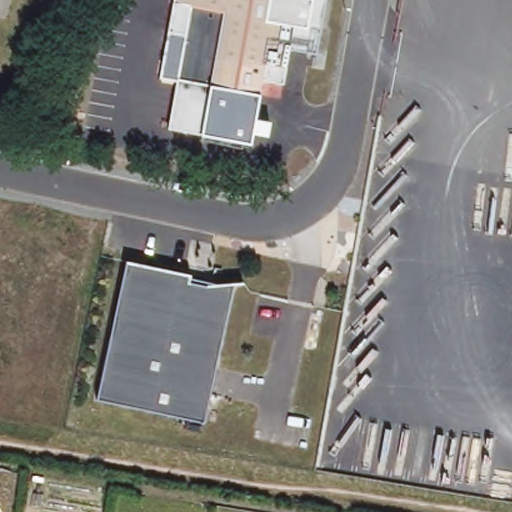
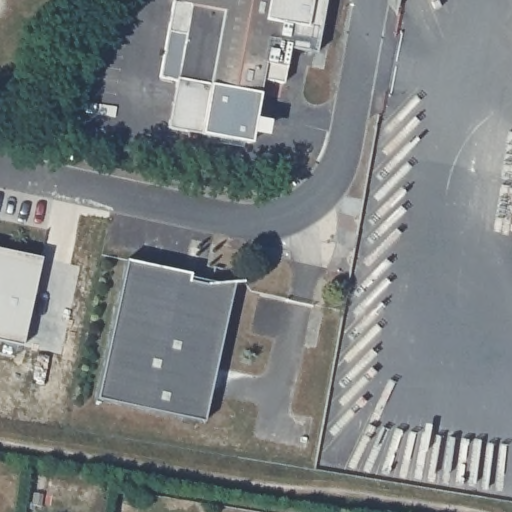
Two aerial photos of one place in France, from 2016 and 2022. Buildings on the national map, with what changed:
unchanged [(262,81),(251,143),(169,130),(186,36),(167,32),(173,0),(323,0),(313,54),(288,49),(286,65),(283,85),(262,81)]
new [(22,347),(0,343),(0,250),(41,259),(22,347)]
unchanged [(100,396),(130,257),(195,270),(239,280),(209,419),(100,396)]

